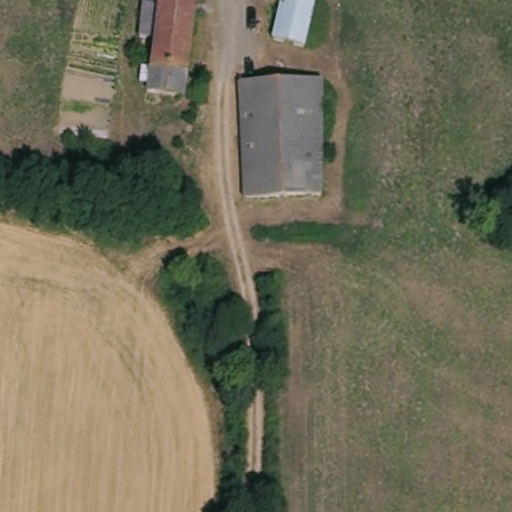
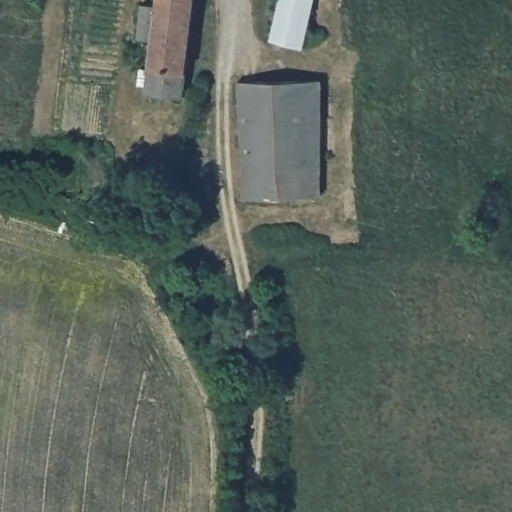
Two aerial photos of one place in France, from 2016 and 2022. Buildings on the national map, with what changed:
unchanged [(183,75),(179,99),(166,97),(140,93),(148,36),(132,32),(134,20),(137,2),(154,4),(154,0),(194,0),(183,75)]
unchanged [(281,0),(312,0),(297,54),(271,43),(281,0)]
unchanged [(237,198),(237,80),(322,84),(322,124),(322,131),(320,202),(265,200),(244,197),(242,199),(237,198)]

